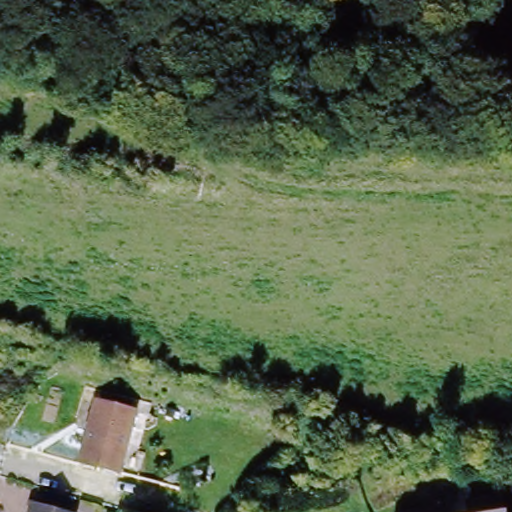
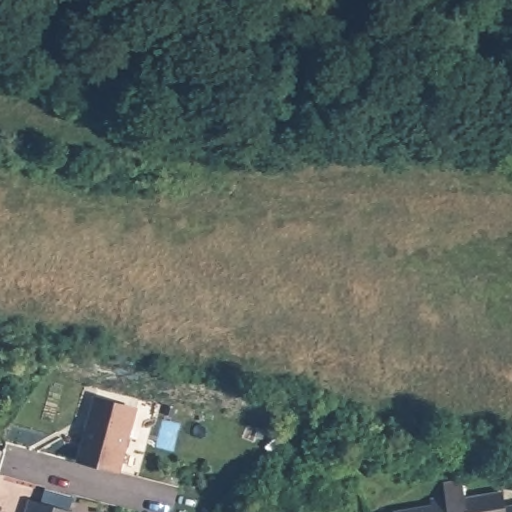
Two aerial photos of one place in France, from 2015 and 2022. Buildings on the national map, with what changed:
unchanged [(120,468),(81,459),(95,399),(135,408),(120,468)]
unchanged [(435,500),(434,493),(448,489),(447,480),(462,478),(464,494),(466,512),(393,512),(392,506),(435,500)]
unchanged [(499,487),(502,504),(512,504),(512,512),(466,512),(464,494),(499,487)]
unchanged [(65,512),(28,512),(30,503),(65,512)]

